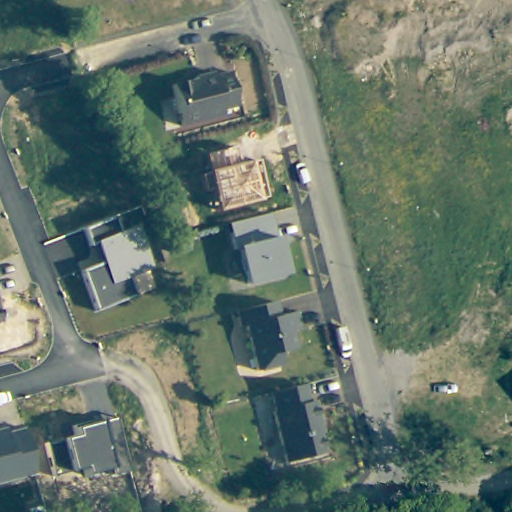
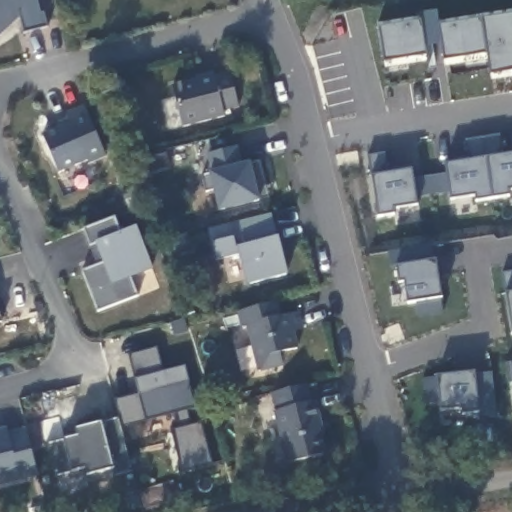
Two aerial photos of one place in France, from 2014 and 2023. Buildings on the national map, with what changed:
unchanged [(41,13),(46,12),(49,26),(25,32),(20,15),(0,35),(0,0),(39,0),(41,13)]
new [(377,24),(418,16),(417,10),(437,7),(438,20),(512,9),(512,67),(489,70),(486,49),(444,56),(441,40),(424,42),(424,50),(382,57),(377,24)]
unchanged [(189,125),(179,84),(203,78),(203,76),(220,71),(221,75),(237,71),(245,105),(229,109),(231,114),(189,125)]
unchanged [(61,124),(59,121),(89,109),(107,155),(89,163),(88,159),(58,172),(42,133),(61,124)]
new [(508,190),(509,195),(476,200),(474,196),(451,199),(449,193),(416,198),(417,205),(394,208),(394,214),(377,216),(371,176),(368,155),(383,152),(387,175),(411,171),(412,179),(444,174),(443,165),(474,161),(465,140),(501,134),(510,154),(512,154),(512,190),(508,190)]
unchanged [(219,213),(201,154),(218,143),(234,145),(240,165),(259,161),(269,199),(219,213)]
unchanged [(236,247),(232,249),(227,226),(270,215),(276,237),(278,236),(288,276),(245,286),(236,247)]
unchanged [(81,271),(101,262),(95,244),(89,246),(83,229),(113,218),(117,231),(136,225),(154,271),(129,279),(138,295),(98,312),(81,271)]
new [(430,245),(434,262),(440,298),(443,313),(417,317),(419,301),(407,303),(404,282),(398,283),(396,268),(388,260),(387,252),(430,245)]
new [(511,334),(504,293),(502,273),(512,271),(512,334),(511,334)]
unchanged [(278,316),(299,311),(304,328),(294,330),(299,347),(281,352),(284,364),(260,370),(249,325),(244,326),(239,311),(274,302),(278,316)]
new [(215,465),(184,473),(171,428),(179,425),(177,415),(124,429),(116,399),(138,394),(128,354),(159,347),(164,369),(187,365),(215,465)]
new [(496,416),(479,418),(479,412),(461,414),(461,408),(439,410),(439,403),(423,405),(420,379),(435,377),(473,372),(491,372),(496,416)]
unchanged [(317,400),(322,399),(327,419),(323,420),(330,451),(294,461),(280,409),(283,409),(278,391),(312,382),(317,400)]
unchanged [(114,477),(111,470),(86,475),(84,469),(53,476),(45,443),(78,435),(75,428),(116,419),(131,473),(114,477)]
unchanged [(0,432),(7,430),(9,433),(24,429),(36,476),(0,485),(0,432)]

